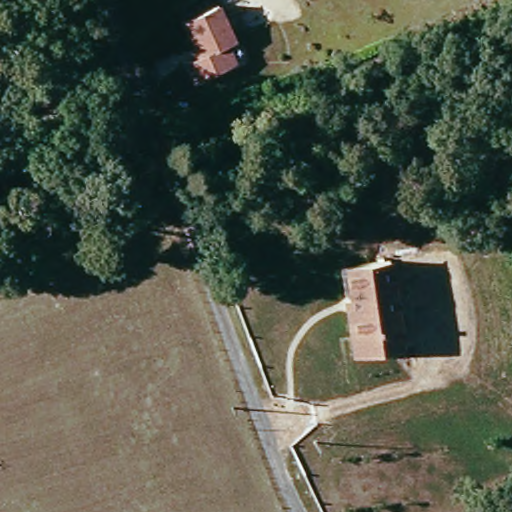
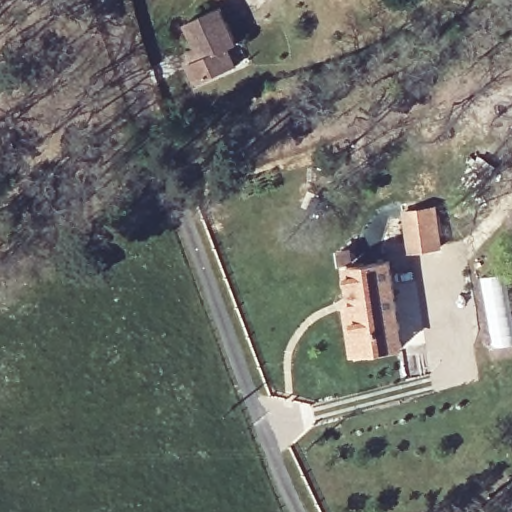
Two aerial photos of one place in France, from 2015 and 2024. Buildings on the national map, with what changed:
unchanged [(235,69),(195,89),(186,71),(192,69),(188,54),(193,51),(187,33),(221,18),(234,48),(227,51),(235,69)]
new [(437,204),(444,249),(407,255),(399,210),(437,204)]
unchanged [(401,343),(358,350),(344,265),(387,259),(401,343)]
new [(503,274),(512,323),(512,344),(492,347),(479,278),(503,274)]

